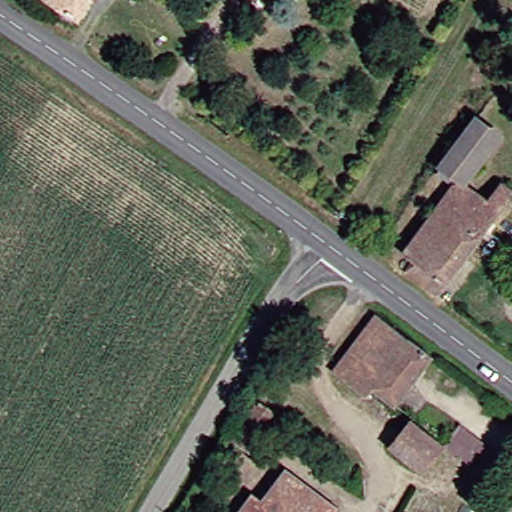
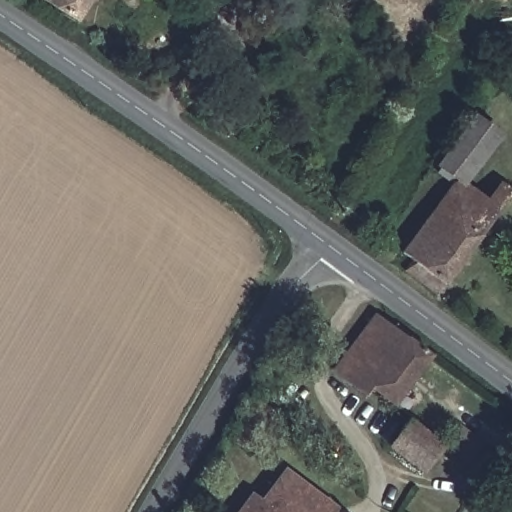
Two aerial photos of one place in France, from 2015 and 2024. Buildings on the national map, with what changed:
unchanged [(49,0),(83,0),(73,17),(49,0)]
unchanged [(451,182),(432,168),(473,117),(496,135),(475,164),(502,184),(487,205),(495,211),(435,293),(399,267),(406,257),(397,251),(451,182)]
unchanged [(372,317),(425,356),(387,406),(368,392),(365,397),(332,372),(372,317)]
unchanged [(258,415),(271,423),(246,463),(233,454),(258,415)]
unchanged [(442,439),(458,423),(485,445),(467,466),(446,451),(421,476),(387,449),(412,418),(442,439)]
unchanged [(245,497),(257,506),(282,473),(329,508),(326,512),(233,512),(237,507),(245,497)]

